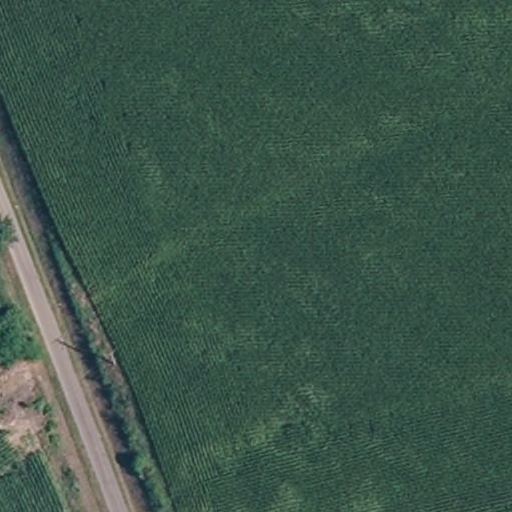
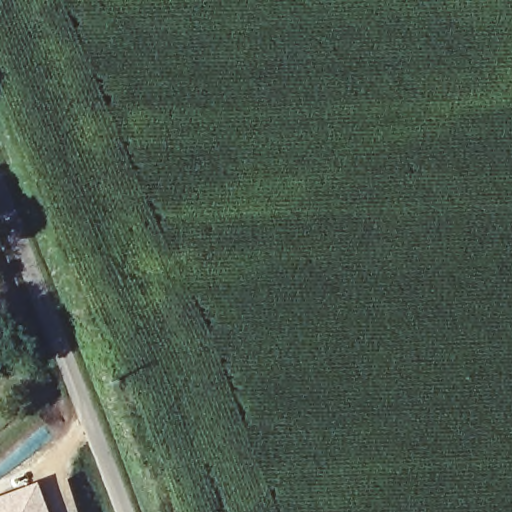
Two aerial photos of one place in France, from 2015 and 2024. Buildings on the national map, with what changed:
new [(51,512),(0,512),(0,497),(40,481),(51,512)]

